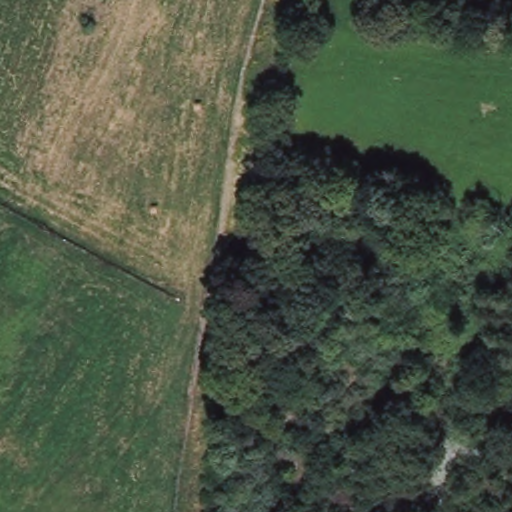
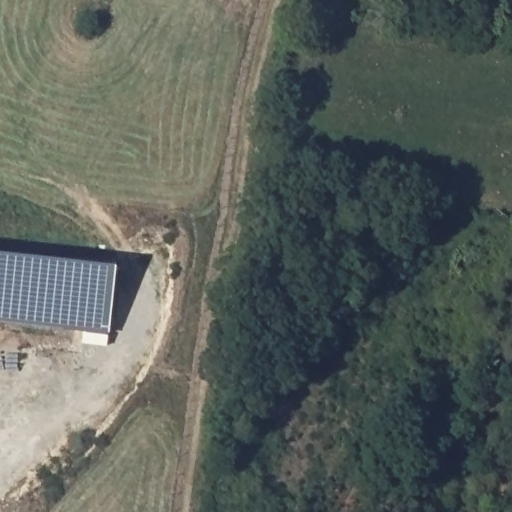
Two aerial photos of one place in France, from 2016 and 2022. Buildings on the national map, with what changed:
new [(110,332),(0,320),(0,252),(117,265),(110,332)]

